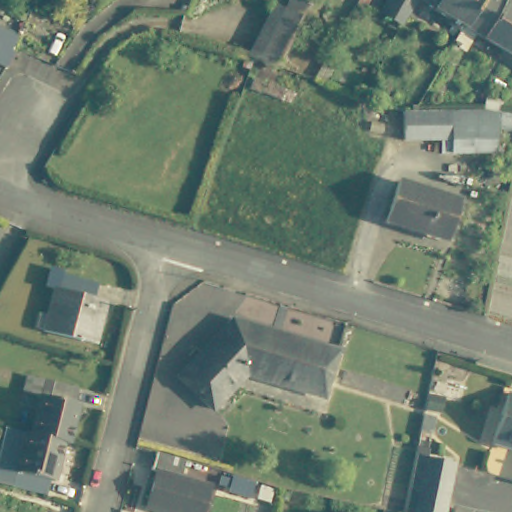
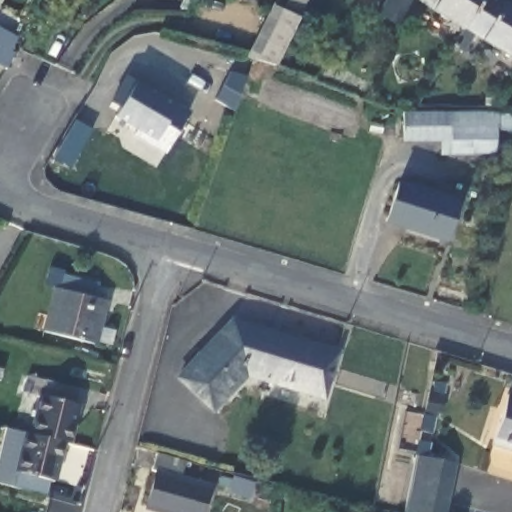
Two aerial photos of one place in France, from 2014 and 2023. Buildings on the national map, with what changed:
unchanged [(290,0),(308,0),(276,72),(250,64),(273,12),(282,15),(290,0)]
unchanged [(349,4),(341,0),(351,0),(349,4)]
unchanged [(402,14),(395,26),(376,15),(384,0),(411,0),(402,14)]
unchanged [(411,0),(475,0),(459,29),(417,4),(409,18),(402,14),(411,0)]
unchanged [(475,0),(497,0),(512,9),(512,60),(509,65),(496,57),(499,52),(478,39),(474,44),(468,40),(460,52),(449,46),(459,29),(475,0)]
unchanged [(0,64),(0,30),(18,41),(16,49),(19,51),(6,69),(0,64)]
new [(114,117),(137,80),(177,104),(189,112),(166,151),(152,144),(154,140),(114,117)]
unchanged [(503,105),(500,115),(485,111),(488,101),(503,105)]
unchanged [(437,118),(451,118),(479,117),(484,117),(500,115),(512,113),(512,137),(502,137),(502,154),(449,156),(449,142),(402,144),(401,114),(414,116),(423,117),(437,118)]
unchanged [(385,228),(398,188),(456,206),(444,246),(385,228)]
unchanged [(61,277),(100,287),(96,302),(108,305),(97,349),(46,336),(61,277)]
unchanged [(238,324),(343,355),(329,401),(251,378),(216,413),(183,380),(238,324)]
unchanged [(86,408),(76,447),(71,446),(38,437),(48,399),(29,393),(33,377),(85,392),(80,407),(86,408)]
unchanged [(424,391),(436,394),(433,410),(420,407),(424,391)]
unchanged [(509,391),(512,391),(512,447),(494,442),(509,391)]
unchanged [(419,412),(430,414),(426,432),(416,430),(419,412)]
unchanged [(60,486),(55,484),(51,498),(0,485),(0,478),(11,431),(38,437),(71,446),(60,486)]
unchanged [(452,500),(413,492),(421,457),(422,450),(433,452),(431,460),(459,465),(452,500)]
unchanged [(184,485),(213,493),(208,512),(151,512),(160,480),(155,478),(160,461),(188,468),(184,485)]
unchanged [(263,482),(259,497),(230,490),(234,475),(263,482)]
unchanged [(450,512),(409,512),(413,492),(452,500),(450,512)]

